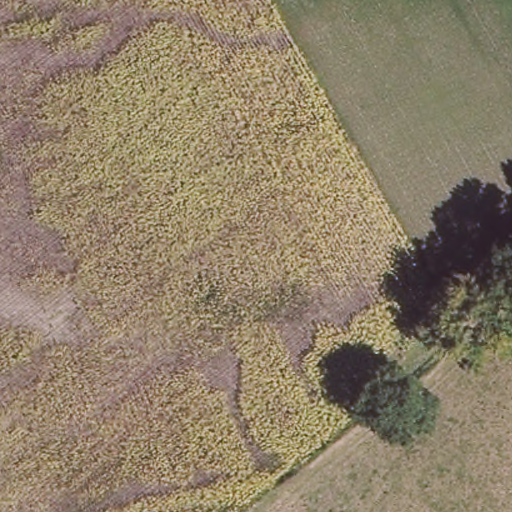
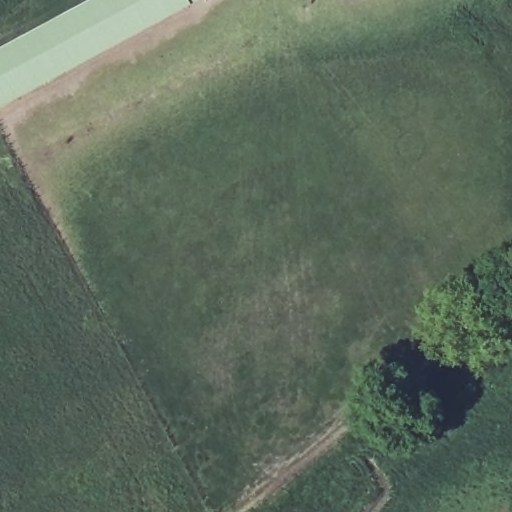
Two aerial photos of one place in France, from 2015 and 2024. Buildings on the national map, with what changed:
new [(98,0),(203,0),(0,104),(0,51),(98,0)]

